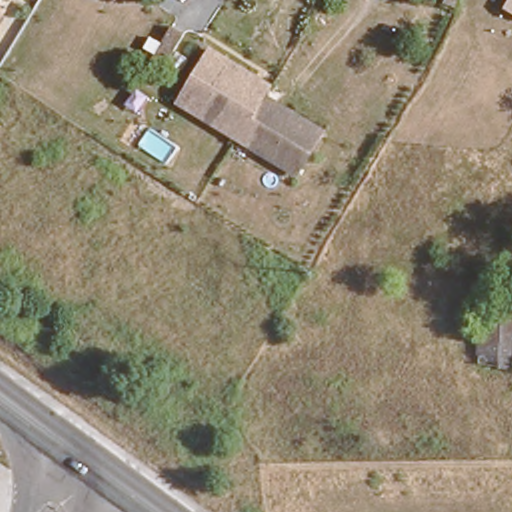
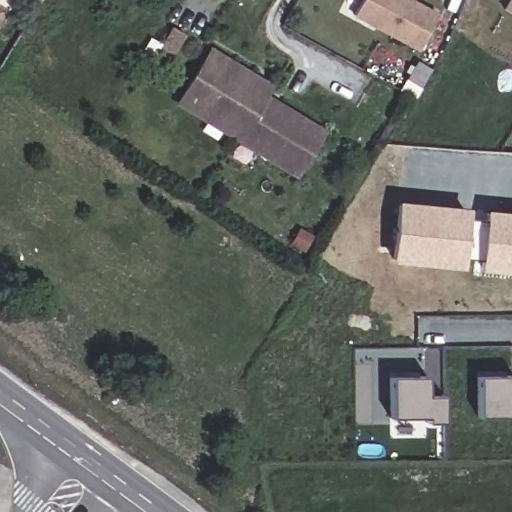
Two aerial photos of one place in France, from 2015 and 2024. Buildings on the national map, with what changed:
unchanged [(0,25),(0,0),(13,0),(14,1),(0,25)]
new [(418,50),(351,16),(360,0),(414,0),(437,13),(418,50)]
demolished [(445,5),(446,0),(460,0),(456,9),(445,5)]
unchanged [(509,0),(512,0),(512,13),(503,8),(509,0)]
unchanged [(190,44),(171,71),(149,56),(166,29),(190,44)]
unchanged [(186,87),(214,44),(271,82),(264,92),(321,129),(293,171),(237,134),(180,97),(186,87)]
new [(508,258),(485,256),(485,264),(420,257),(425,203),(490,209),(490,216),(512,218),(512,266),(507,266),(508,258)]
demolished [(512,364),(480,362),(483,305),(512,306),(512,364)]
new [(483,372),(512,372),(512,413),(483,412),(483,372)]
new [(448,418),(431,418),(431,413),(395,413),(395,373),(431,373),(431,392),(447,392),(448,418)]

